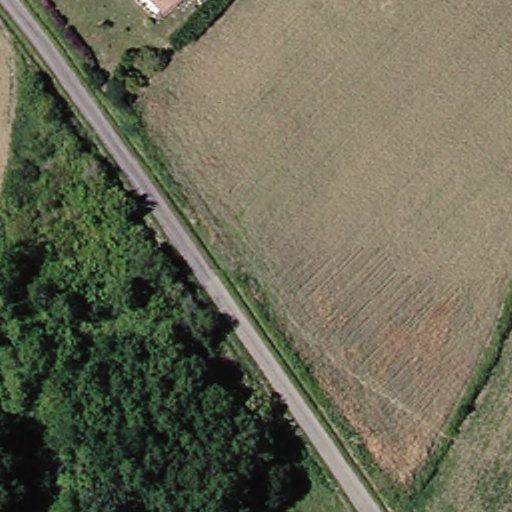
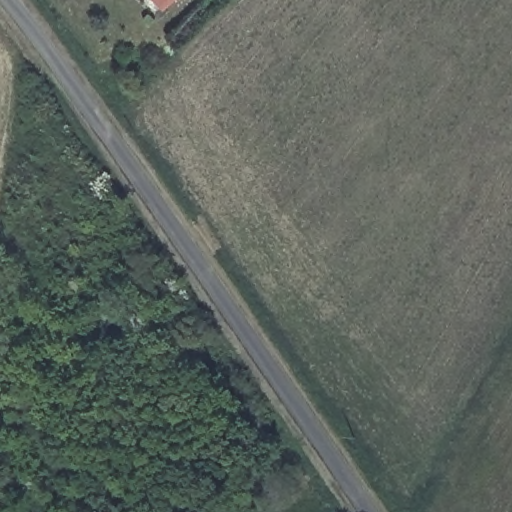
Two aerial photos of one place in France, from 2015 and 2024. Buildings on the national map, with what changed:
unchanged [(158,0),(162,0),(160,2),(158,0)]

